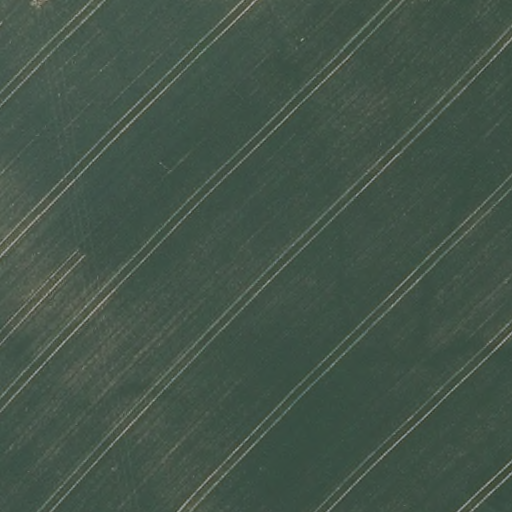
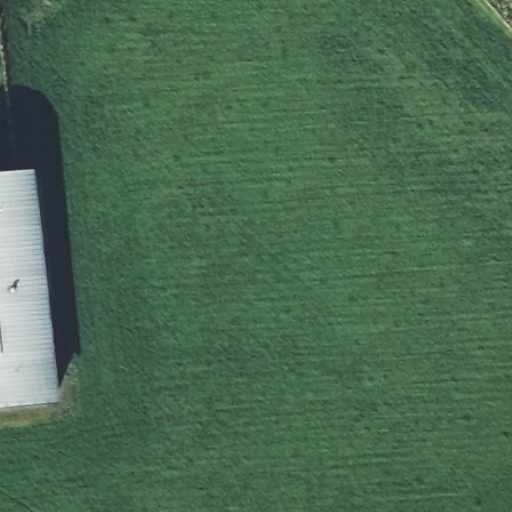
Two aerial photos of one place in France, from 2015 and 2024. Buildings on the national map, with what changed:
new [(22,176),(23,186),(35,185),(55,392),(46,392),(50,404),(0,408),(0,178),(22,176)]

